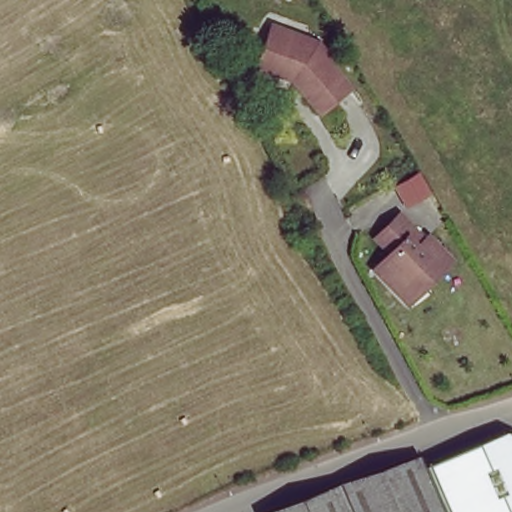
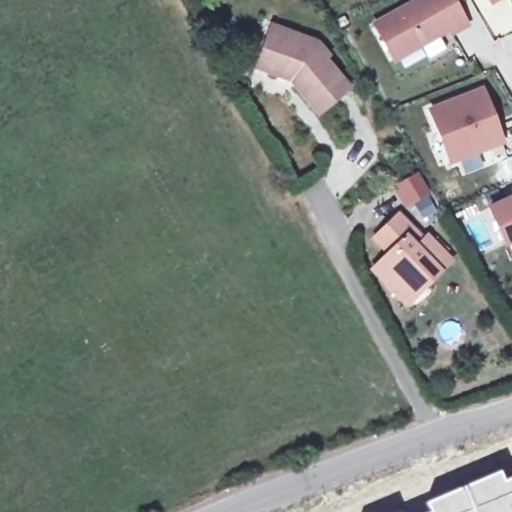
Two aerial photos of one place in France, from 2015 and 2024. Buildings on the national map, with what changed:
new [(467,25),(452,33),(449,29),(394,60),(374,24),(418,0),(453,0),(467,25)]
new [(492,5),(488,0),(499,0),(492,5)]
new [(511,7),(507,0),(512,0),(512,7),(511,7)]
unchanged [(320,109),(294,73),(263,59),(278,22),(316,33),(331,51),(331,57),(349,85),(320,109)]
new [(502,142),(450,162),(430,110),(482,90),(502,142)]
new [(427,193),(413,202),(402,183),(416,174),(427,193)]
new [(512,197),(512,241),(505,244),(489,208),(512,197)]
unchanged [(402,301),(371,266),(393,246),(378,230),(392,217),(416,245),(428,235),(449,258),(402,301)]
demolished [(512,440),(512,512),(442,512),(426,474),(512,440)]
demolished [(426,474),(442,512),(282,512),(419,461),(426,474)]
new [(498,471),(502,481),(512,477),(512,512),(428,512),(424,502),(498,471)]

